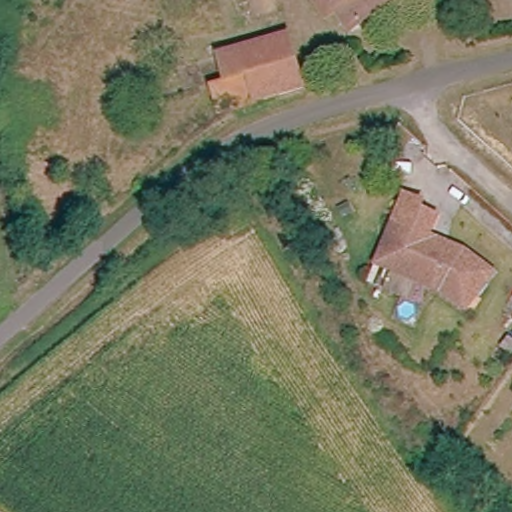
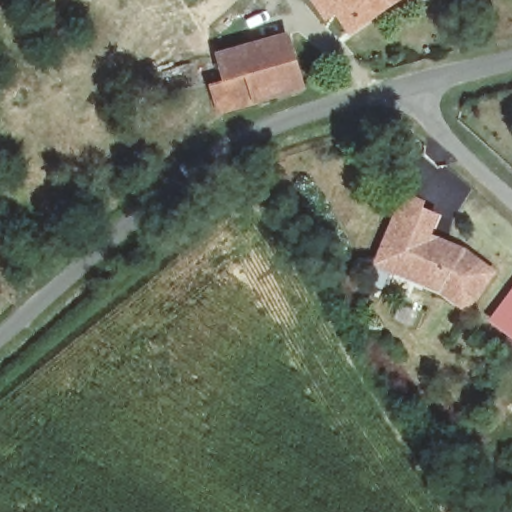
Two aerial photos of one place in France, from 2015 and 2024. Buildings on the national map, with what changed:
unchanged [(331,19),(317,29),(306,11),(302,6),(310,0),(397,0),(343,37),(331,19)]
unchanged [(285,40),(287,47),(301,85),(255,102),(219,116),(208,88),(197,60),(210,56),(252,40),(280,29),(285,40)]
unchanged [(421,204),(438,211),(430,231),(437,234),(448,239),(465,247),(493,268),(466,304),(442,285),(394,265),(378,257),(390,229),(407,190),(425,197),(421,204)]
new [(512,288),(512,337),(489,319),(512,288)]

